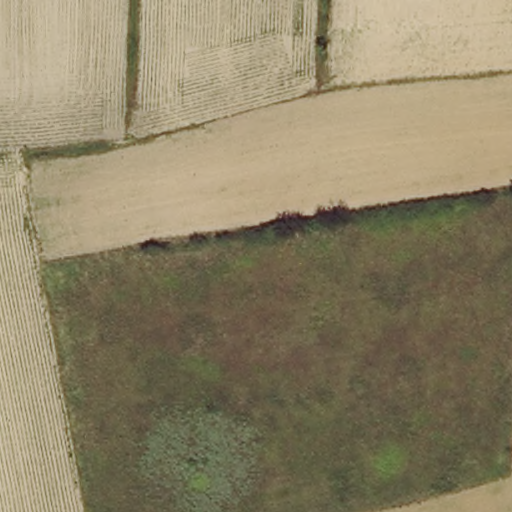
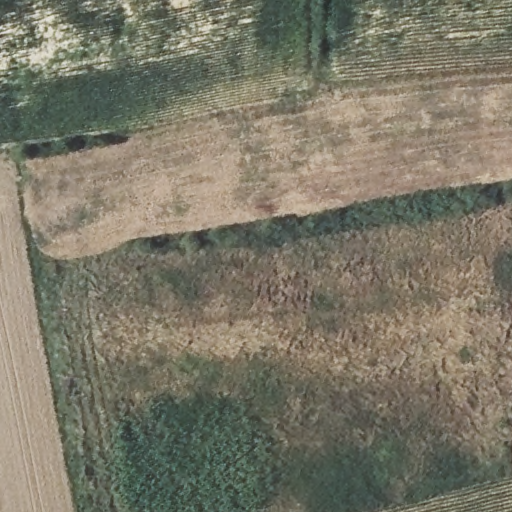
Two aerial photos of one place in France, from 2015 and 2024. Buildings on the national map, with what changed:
[]

